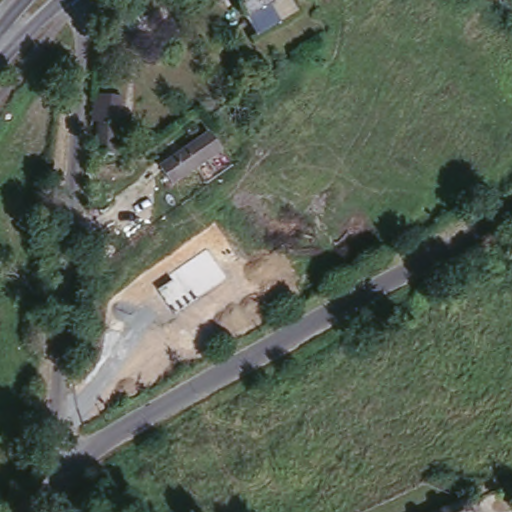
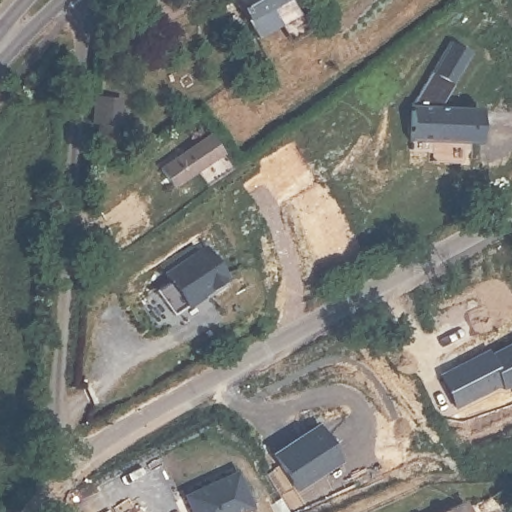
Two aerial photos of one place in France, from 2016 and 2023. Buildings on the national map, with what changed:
unchanged [(259,36),(236,0),(294,0),(301,11),(259,36)]
new [(478,55),(448,106),(477,108),(479,147),(414,146),(412,101),(450,37),(478,55)]
unchanged [(129,101),(124,157),(96,156),(100,93),(129,101)]
unchanged [(210,130),(225,150),(178,183),(165,165),(210,130)]
new [(155,290),(210,251),(229,278),(173,316),(155,290)]
new [(492,354),(512,342),(512,386),(507,388),(504,380),(460,405),(443,370),(489,345),(492,354)]
new [(283,457),(325,430),(346,460),(300,488),(283,457)]
new [(183,494),(238,471),(255,508),(244,512),(191,512),(183,494)]
unchanged [(466,502),(470,512),(442,512),(466,502)]

